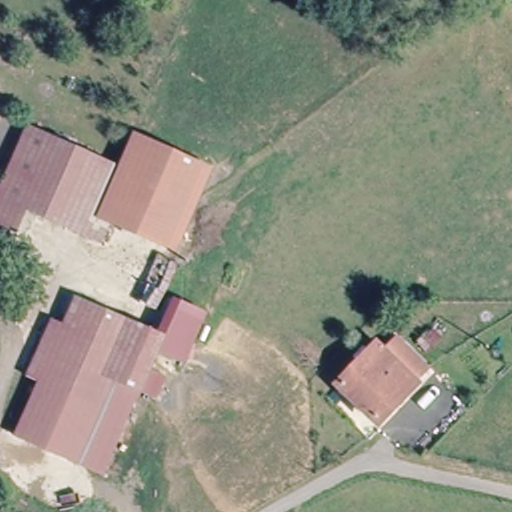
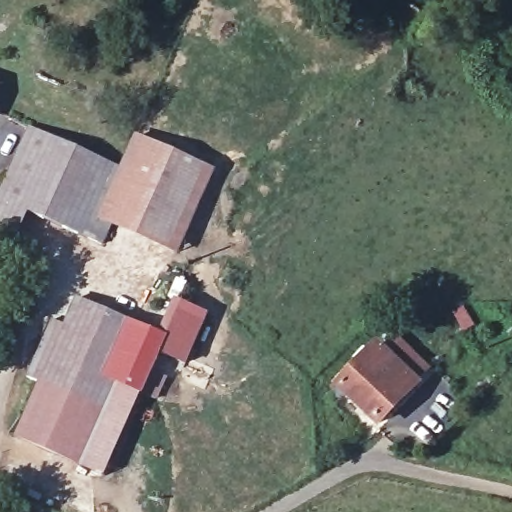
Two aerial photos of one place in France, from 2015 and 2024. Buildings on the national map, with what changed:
unchanged [(25,142),(50,152),(37,197),(9,189),(25,142)]
unchanged [(101,231),(121,176),(128,157),(132,147),(210,177),(196,215),(178,261),(115,236),(101,231)]
unchanged [(37,197),(50,152),(121,176),(101,231),(115,236),(109,252),(38,226),(29,251),(0,240),(0,212),(9,189),(37,197)]
unchanged [(179,298),(206,307),(189,357),(162,348),(168,332),(179,298)]
unchanged [(44,366),(57,332),(65,335),(77,302),(161,331),(168,332),(162,348),(148,392),(119,382),(90,470),(85,467),(15,443),(37,386),(44,366)]
unchanged [(381,422),(340,385),(383,335),(426,372),(381,422)]

